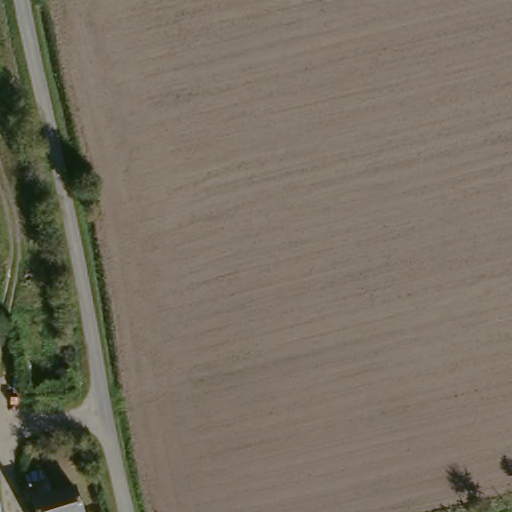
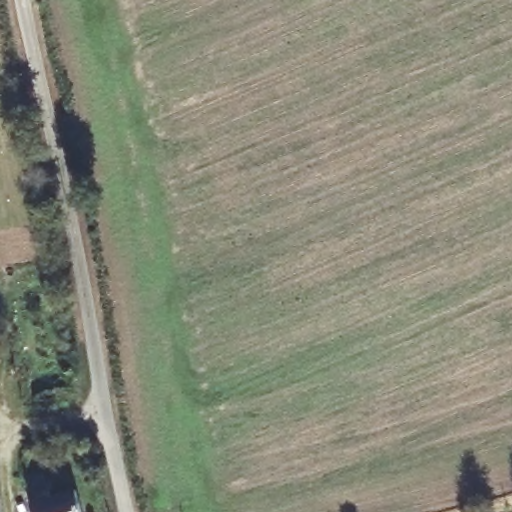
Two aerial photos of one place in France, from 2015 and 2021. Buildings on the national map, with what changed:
unchanged [(49,465),(51,475),(55,488),(80,482),(87,512),(40,512),(31,480),(29,471),(49,465)]

